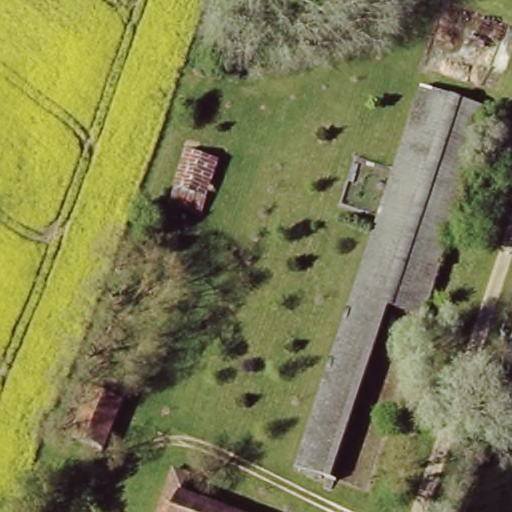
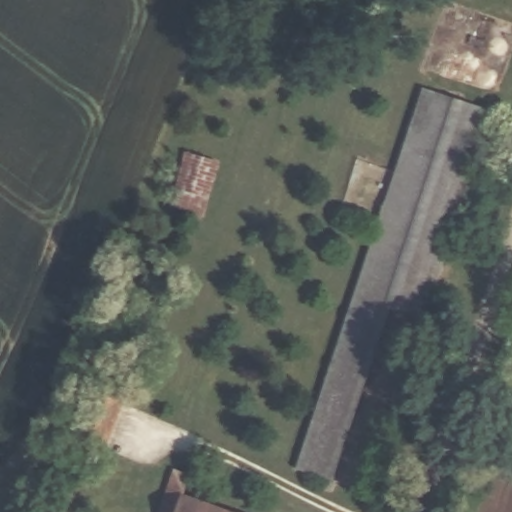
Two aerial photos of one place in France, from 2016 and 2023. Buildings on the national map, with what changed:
unchanged [(331,480),(295,468),(420,87),(495,111),(407,428),(350,412),(331,480)]
unchanged [(223,167),(206,202),(175,191),(189,150),(223,167)]
unchanged [(118,407),(100,455),(70,443),(88,396),(118,407)]
unchanged [(155,512),(162,491),(229,512),(155,512)]

